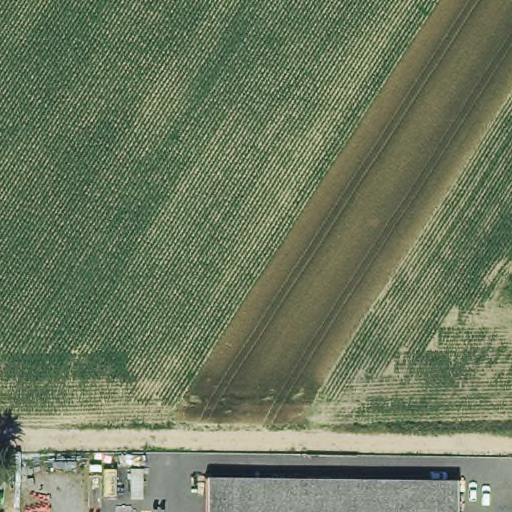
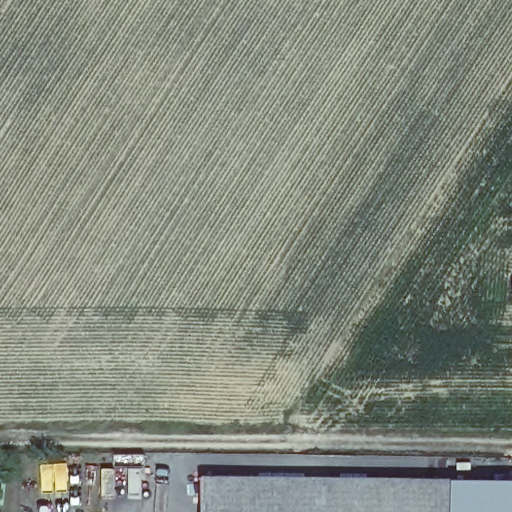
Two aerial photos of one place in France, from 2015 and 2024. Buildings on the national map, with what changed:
unchanged [(207,512),(208,472),(457,477),(457,512),(207,512)]
new [(512,512),(457,512),(457,477),(512,475),(512,512)]

